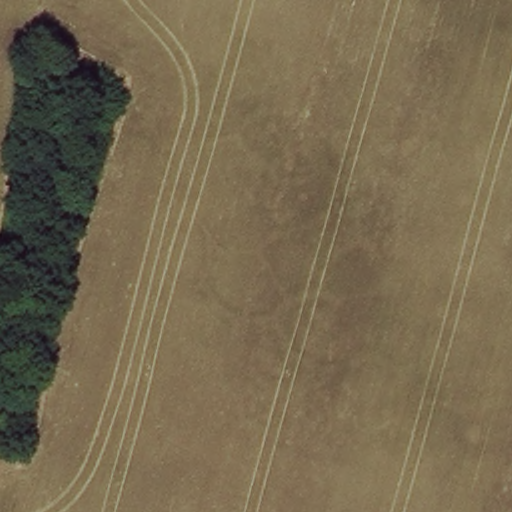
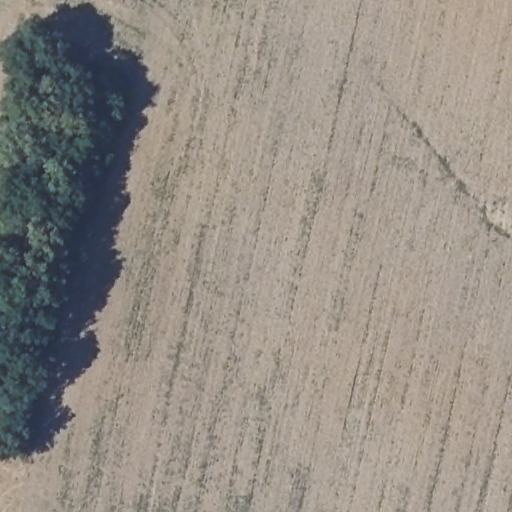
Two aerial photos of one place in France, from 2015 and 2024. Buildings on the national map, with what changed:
[]

